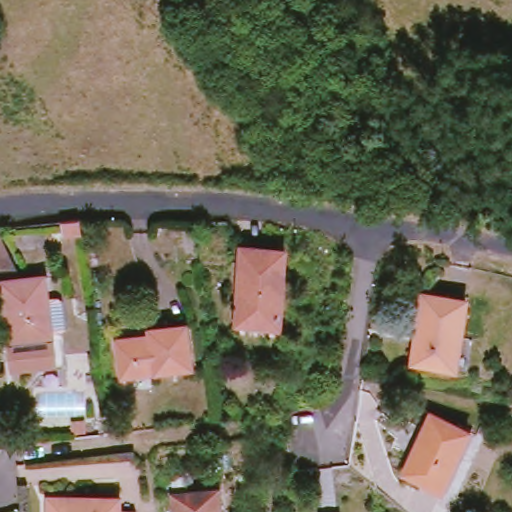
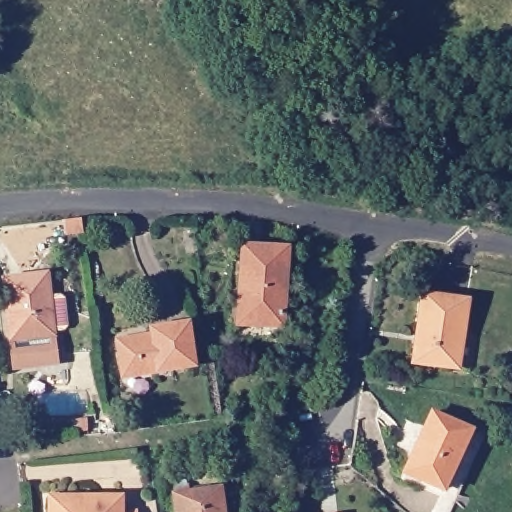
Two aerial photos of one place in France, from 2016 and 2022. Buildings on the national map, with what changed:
unchanged [(55,332),(12,337),(5,279),(9,278),(0,260),(0,233),(5,232),(32,276),(47,274),(50,301),(55,332)]
unchanged [(292,249),(289,326),(240,325),(243,248),(292,249)]
unchanged [(471,304),(461,369),(420,363),(432,297),(471,304)]
unchanged [(55,332),(50,301),(70,299),(73,335),(58,335),(62,374),(15,375),(12,337),(55,332)]
unchanged [(199,368),(128,378),(125,344),(158,339),(162,333),(195,328),(199,368)]
unchanged [(473,433),(445,494),(411,478),(425,450),(418,447),(435,415),(473,433)]
unchanged [(180,512),(179,506),(223,501),(225,512),(180,512)]
unchanged [(122,512),(57,512),(57,503),(122,503),(122,512)]

